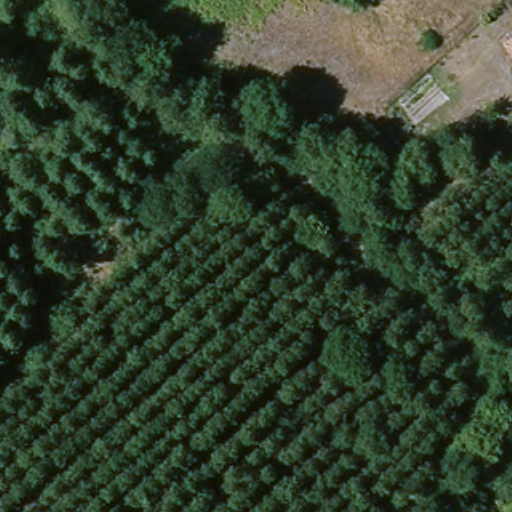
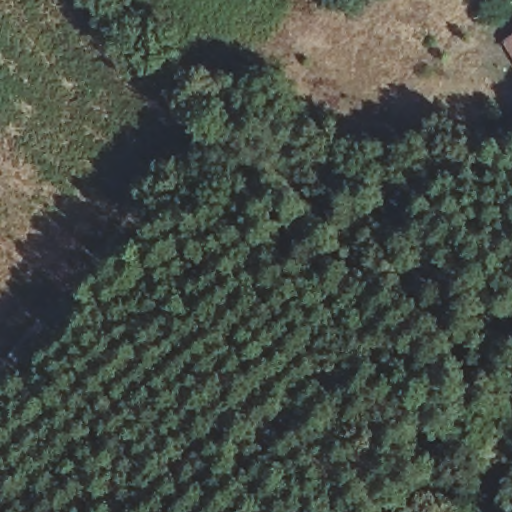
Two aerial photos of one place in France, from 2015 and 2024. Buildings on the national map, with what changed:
unchanged [(512,34),(512,39),(510,35),(512,34)]

